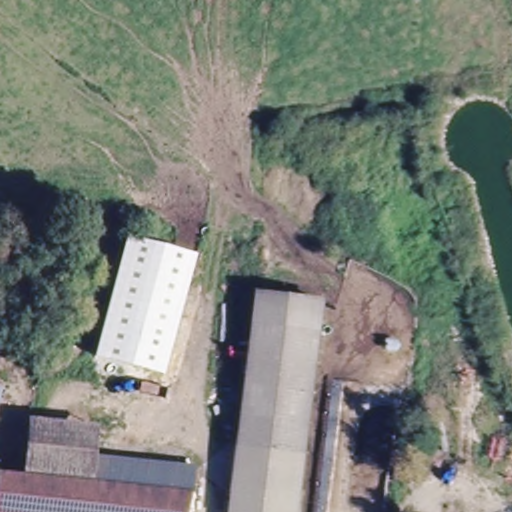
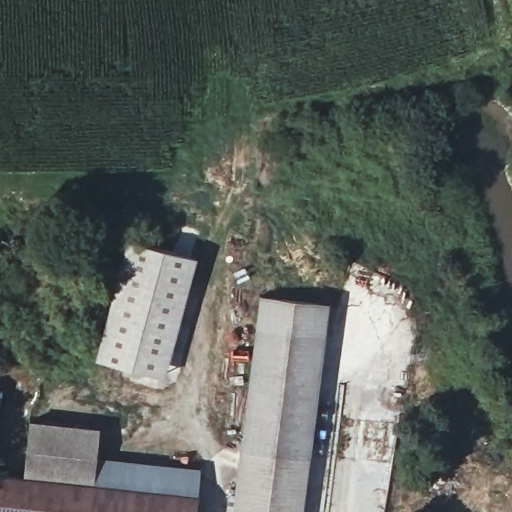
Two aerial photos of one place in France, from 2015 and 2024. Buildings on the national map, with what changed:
unchanged [(162,378),(93,360),(127,239),(195,256),(162,378)]
unchanged [(214,512),(217,493),(223,493),(248,293),(317,302),(292,512),(214,512)]
unchanged [(317,512),(334,384),(343,385),(328,512),(317,512)]
unchanged [(16,474),(23,419),(94,428),(90,455),(195,467),(190,512),(0,512),(0,472),(16,474)]

